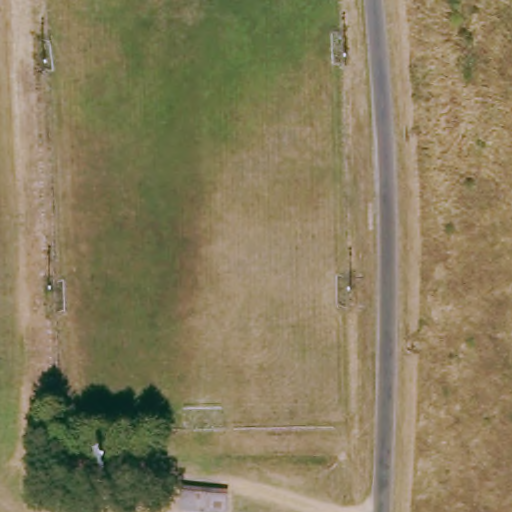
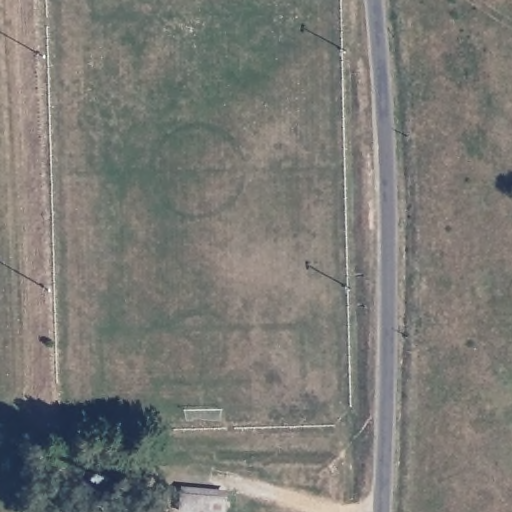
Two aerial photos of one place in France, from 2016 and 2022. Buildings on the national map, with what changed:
unchanged [(183,493),(225,498),(224,512),(200,512),(180,510),(183,493)]

